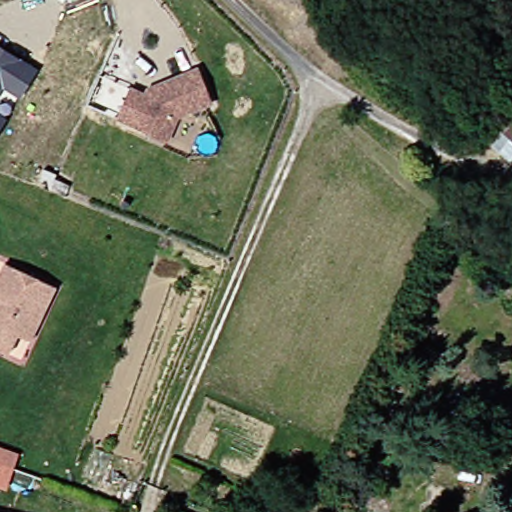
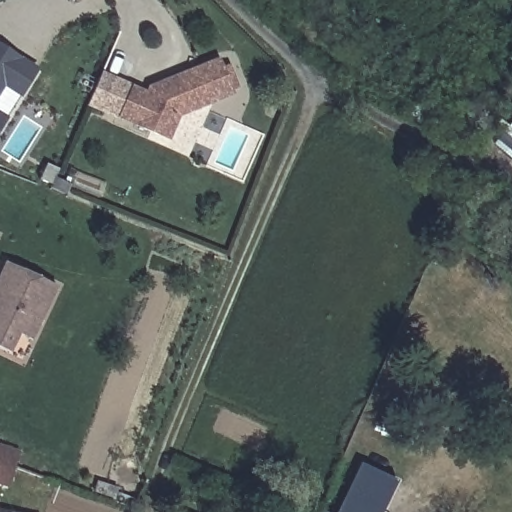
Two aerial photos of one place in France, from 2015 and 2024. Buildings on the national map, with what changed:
unchanged [(3,87),(0,92),(0,45),(37,67),(19,97),(3,87)]
unchanged [(130,89),(145,95),(159,90),(157,86),(197,70),(210,105),(176,117),(166,141),(117,120),(130,89)]
unchanged [(0,127),(0,113),(6,117),(0,127)]
unchanged [(60,288),(31,341),(5,326),(0,335),(0,272),(8,258),(60,288)]
unchanged [(0,487),(0,446),(19,452),(6,489),(0,487)]
new [(360,463),(398,481),(383,512),(338,512),(360,463)]
demolished [(37,488),(16,482),(21,465),(42,472),(37,488)]
demolished [(355,498),(370,504),(366,512),(349,512),(355,498)]
new [(321,510),(326,512),(320,512),(321,510)]

